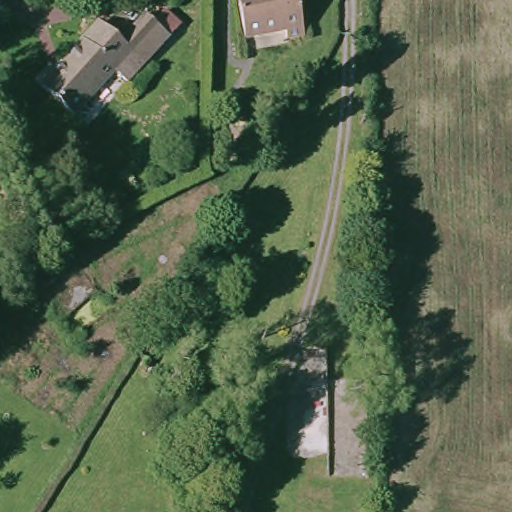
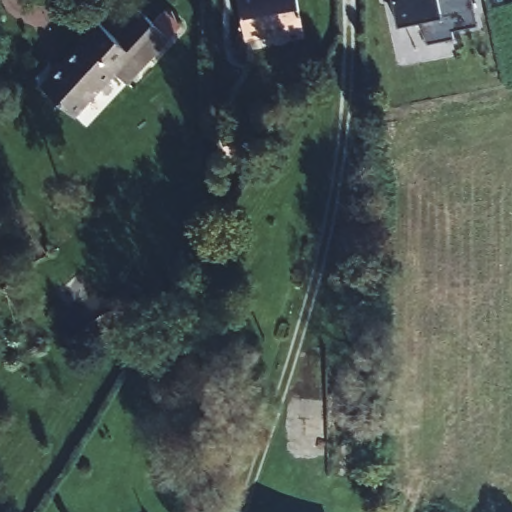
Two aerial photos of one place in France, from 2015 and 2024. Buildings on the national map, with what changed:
unchanged [(300,0),(306,30),(288,33),(286,26),(246,33),(240,0),(300,0)]
new [(452,37),(426,42),(422,17),(398,23),(393,0),(471,0),(476,22),(450,28),(452,37)]
unchanged [(96,20),(115,35),(140,9),(167,31),(125,80),(108,67),(71,110),(40,85),(96,20)]

